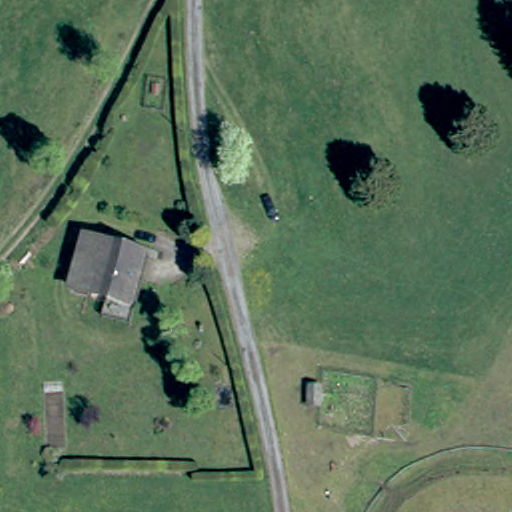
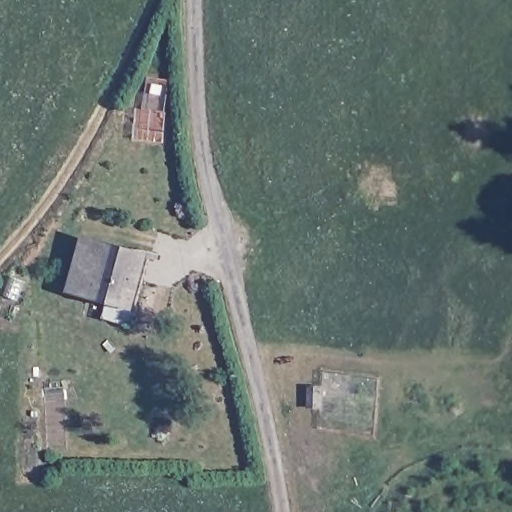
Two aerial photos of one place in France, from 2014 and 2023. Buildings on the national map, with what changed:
unchanged [(90,242),(110,248),(98,297),(77,292),(90,242)]
unchanged [(110,248),(152,259),(139,308),(98,297),(110,248)]

